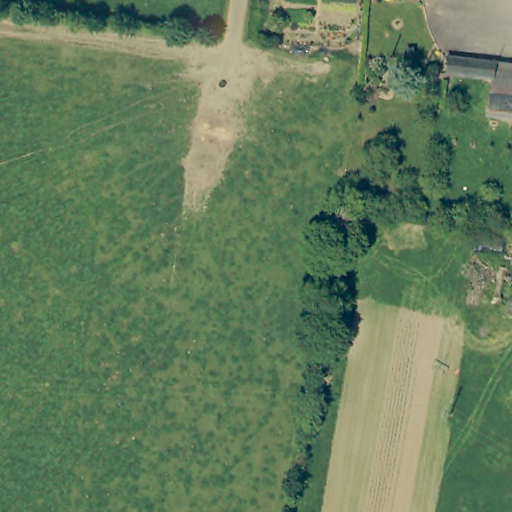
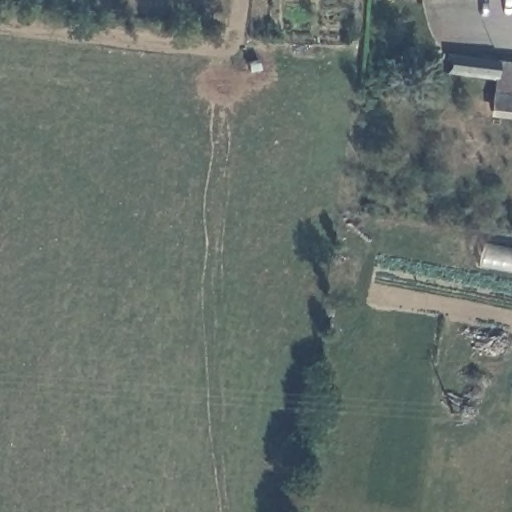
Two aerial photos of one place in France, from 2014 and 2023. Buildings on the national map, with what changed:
unchanged [(408,50),(417,51),(417,58),(408,57),(408,50)]
unchanged [(489,106),(488,76),(470,75),(455,74),(440,74),(441,60),(455,60),(512,62),(512,108),(489,106)]

